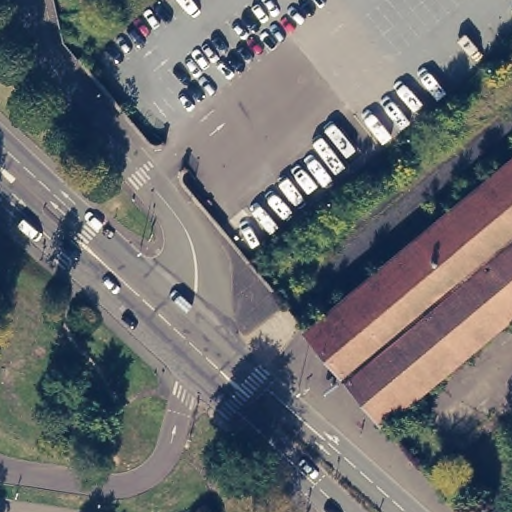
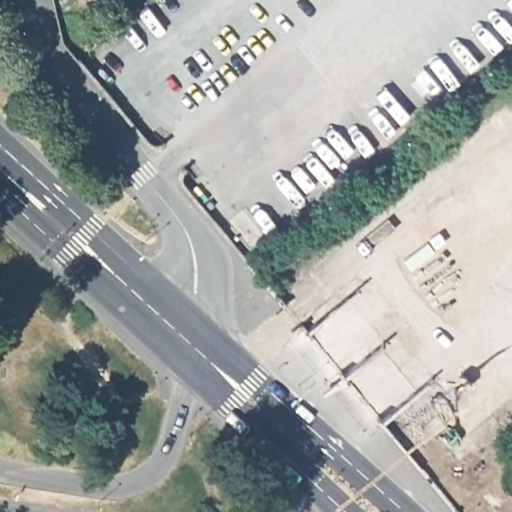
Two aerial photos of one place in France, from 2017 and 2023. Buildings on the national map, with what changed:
demolished [(512,309),(381,417),(305,326),(512,154),(512,309)]

